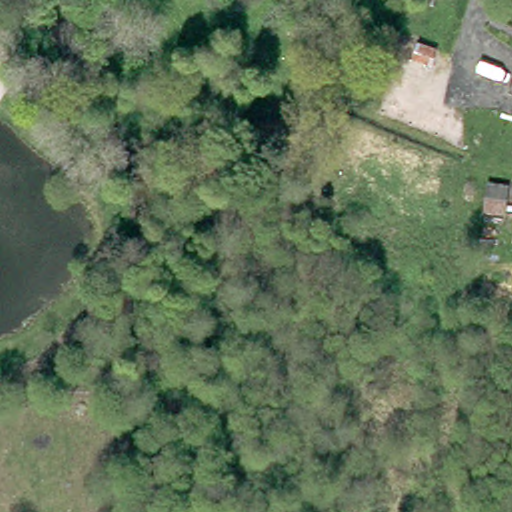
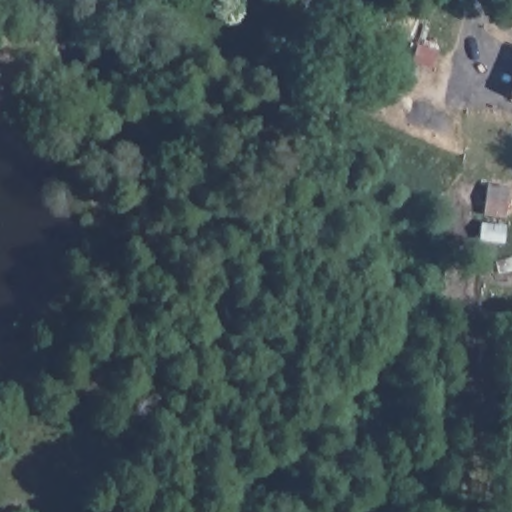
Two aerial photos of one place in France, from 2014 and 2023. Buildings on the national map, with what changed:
[]

